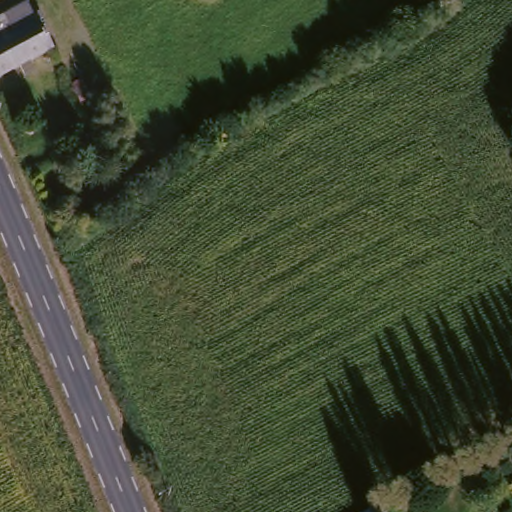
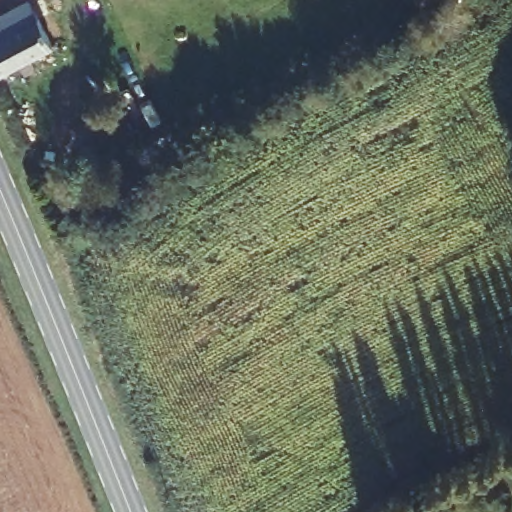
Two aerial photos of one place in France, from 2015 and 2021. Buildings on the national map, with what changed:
unchanged [(0,41),(0,17),(35,0),(37,0),(46,19),(11,35),(0,41)]
unchanged [(25,65),(11,35),(46,19),(59,51),(25,65)]
unchanged [(0,76),(0,41),(11,35),(25,65),(0,76)]
unchanged [(371,503),(376,512),(358,512),(371,503)]

